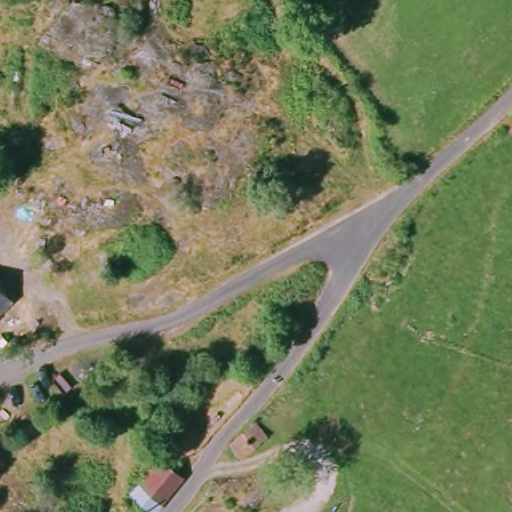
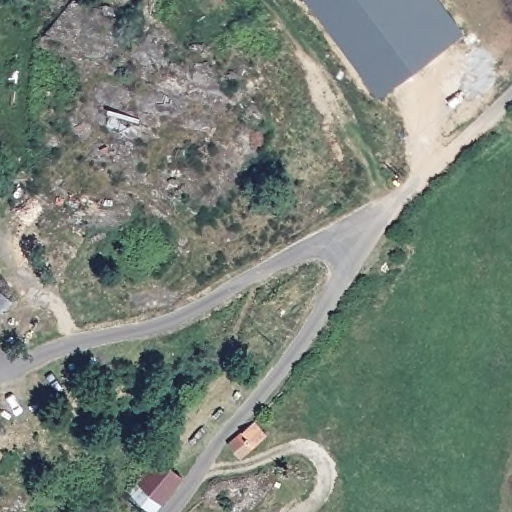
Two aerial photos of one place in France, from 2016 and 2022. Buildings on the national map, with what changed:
new [(307,0),(434,0),(462,36),(380,104),(307,0)]
unchanged [(10,299),(19,307),(7,319),(0,325),(0,292),(10,299)]
unchanged [(154,512),(144,512),(126,498),(157,461),(181,483),(154,512)]

